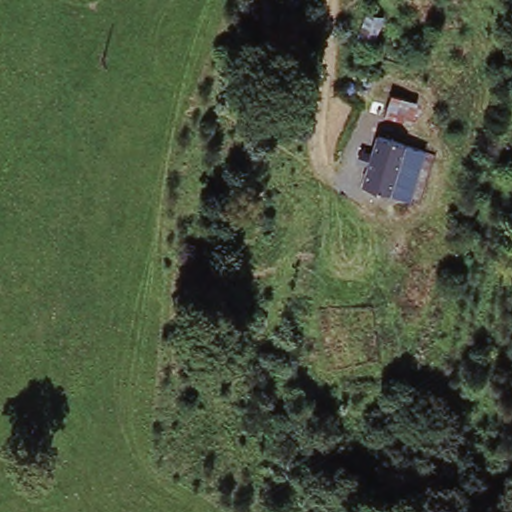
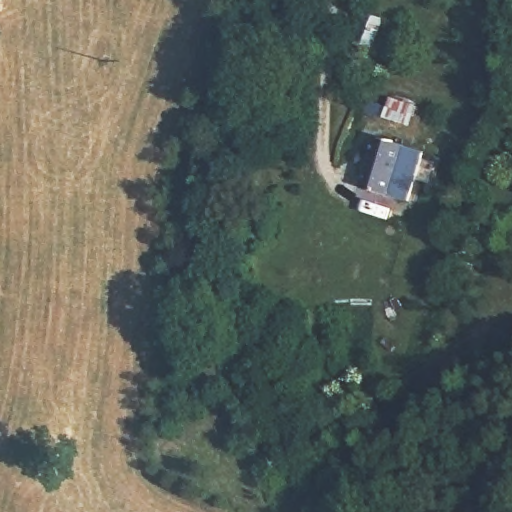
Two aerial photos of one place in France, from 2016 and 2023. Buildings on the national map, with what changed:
unchanged [(391,124),(396,98),(428,104),(423,130),(391,124)]
unchanged [(419,154),(400,201),(366,189),(384,141),(419,154)]

